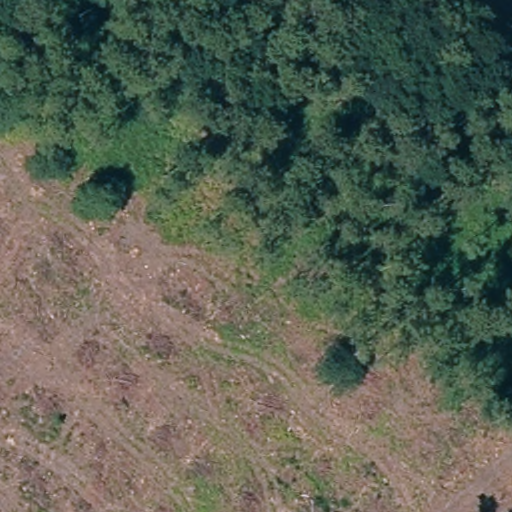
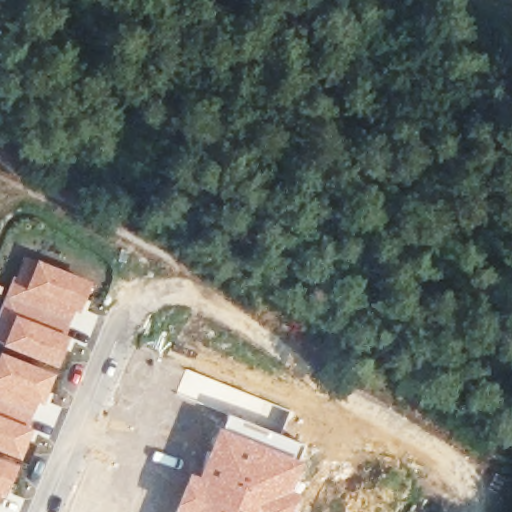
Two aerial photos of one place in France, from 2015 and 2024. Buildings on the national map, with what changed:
new [(23,256),(36,259),(93,281),(83,309),(98,315),(90,336),(71,328),(68,334),(1,306),(23,256)]
new [(68,334),(74,337),(60,369),(32,362),(33,358),(0,342),(0,309),(1,306),(68,334)]
new [(32,362),(60,369),(47,402),(62,407),(53,428),(32,419),(30,426),(0,413),(0,351),(23,358),(32,362)]
new [(227,410),(302,443),(297,456),(221,425),(227,410)]
new [(36,429),(22,460),(0,450),(0,413),(30,426),(36,429)]
new [(197,473),(218,424),(221,425),(297,456),(308,461),(297,489),(302,491),(293,512),(172,512),(189,470),(197,473)]
new [(0,507),(0,458),(21,465),(0,507)]

